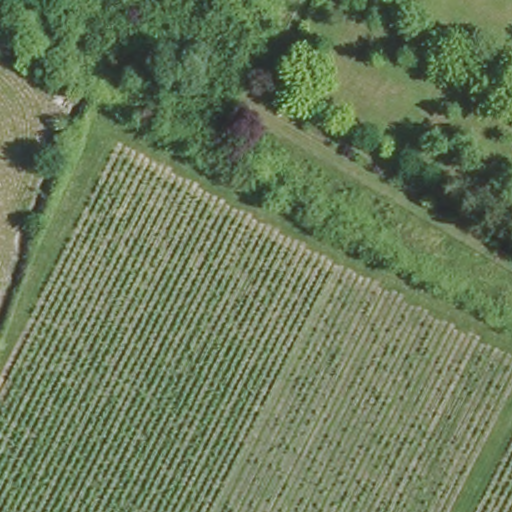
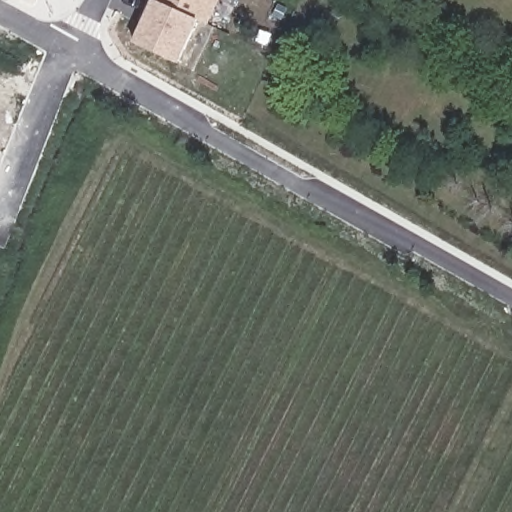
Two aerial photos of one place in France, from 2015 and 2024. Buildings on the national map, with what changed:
new [(206,23),(197,19),(177,63),(132,42),(152,0),(217,0),(206,23)]
unchanged [(63,94),(61,100),(59,107),(46,102),(49,93),(51,89),(63,94)]

